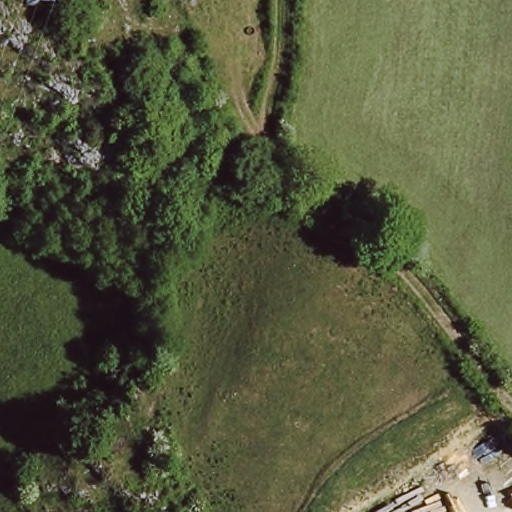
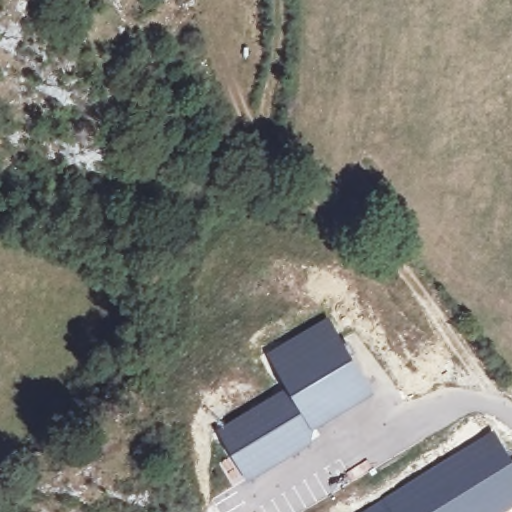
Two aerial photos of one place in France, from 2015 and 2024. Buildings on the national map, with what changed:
new [(250,483),(218,431),(289,388),(268,355),(328,319),(373,396),(314,431),(311,446),(250,483)]
new [(495,430),(512,454),(512,508),(505,512),(391,512),(382,498),(495,430)]
new [(382,498),(391,512),(359,512),(382,498)]

